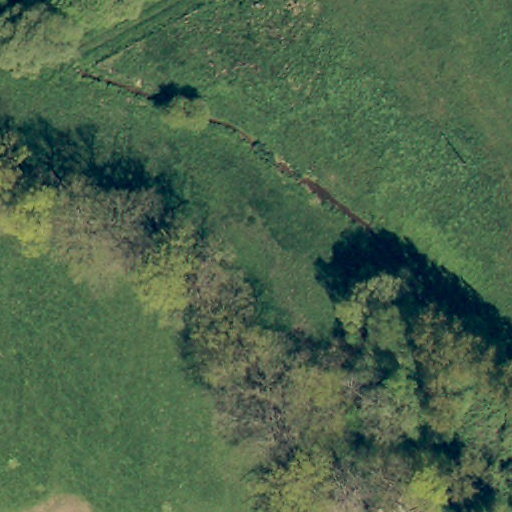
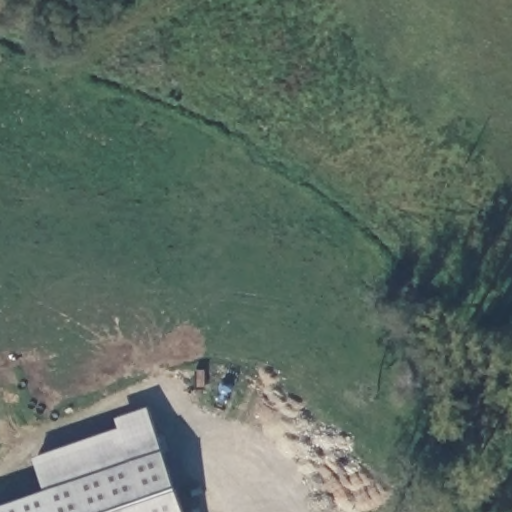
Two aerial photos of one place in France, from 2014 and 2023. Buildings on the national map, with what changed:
new [(33,457),(119,427),(116,418),(149,406),(187,512),(0,512),(0,505),(44,490),(33,457)]

